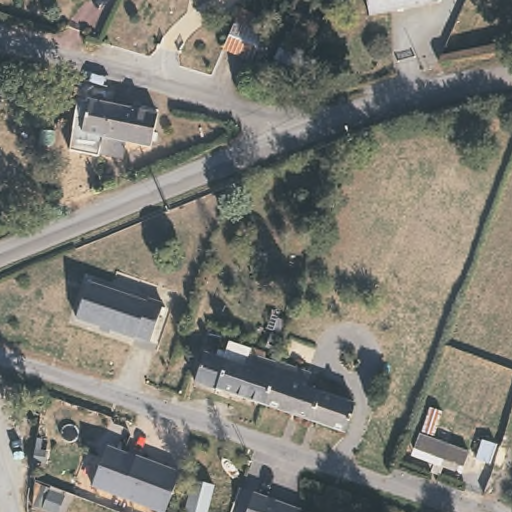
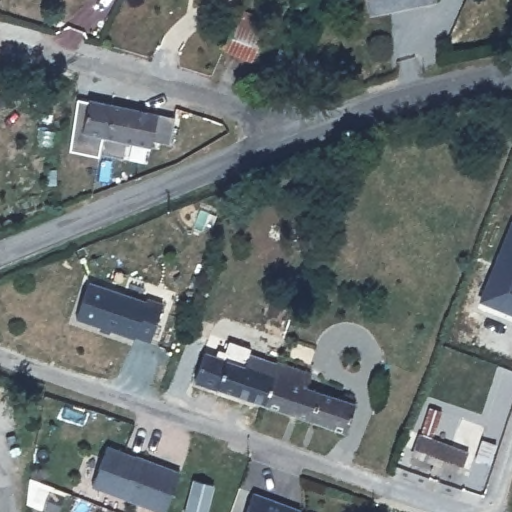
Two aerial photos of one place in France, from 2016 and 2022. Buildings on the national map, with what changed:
unchanged [(376,10),(374,0),(427,0),(376,10)]
unchanged [(257,15),(256,18),(267,24),(263,33),(274,37),(265,57),(258,54),(255,60),(222,45),(240,7),(257,15)]
unchanged [(316,29),(308,46),(293,39),(301,23),(316,29)]
unchanged [(102,152),(106,134),(82,129),(91,95),(114,101),(159,110),(158,112),(150,144),(130,139),(126,158),(102,152)]
new [(510,219),(512,220),(512,315),(478,301),(510,219)]
unchanged [(147,331),(132,327),(132,328),(72,311),(83,275),(141,292),(142,288),(158,292),(147,331)]
unchanged [(271,356),(256,399),(191,377),(202,346),(219,353),(225,336),(246,344),(245,348),(271,356)]
unchanged [(306,365),(301,380),(309,383),(306,392),(302,415),(256,399),(271,356),(272,353),(306,365)]
unchanged [(337,393),(351,398),(341,428),(302,415),(306,392),(309,383),(337,393)]
unchanged [(471,451),(465,466),(414,448),(419,433),(471,451)]
unchanged [(110,447),(148,463),(149,461),(180,474),(167,506),(165,512),(156,512),(94,486),(110,447)]
unchanged [(205,512),(185,512),(192,489),(194,482),(212,487),(205,512)]
unchanged [(243,512),(252,491),(283,503),(280,509),(288,512),(243,512)]
unchanged [(302,512),(300,512),(300,511),(302,512)]

